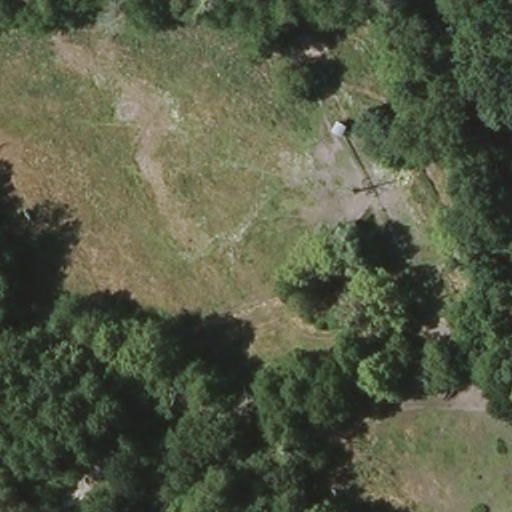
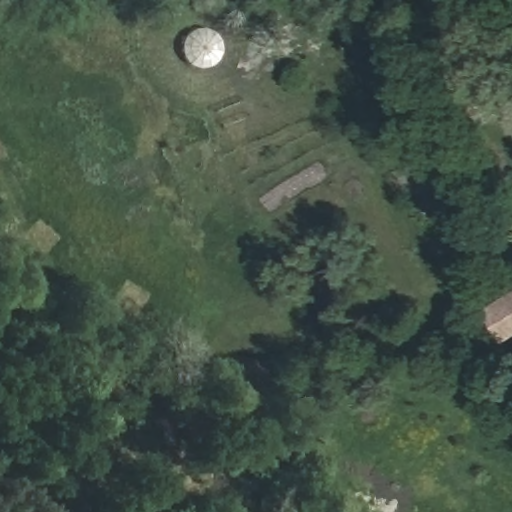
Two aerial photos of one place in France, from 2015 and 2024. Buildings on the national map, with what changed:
new [(506,342),(487,309),(512,294),(512,338),(506,342)]
demolished [(512,295),(512,359),(480,334),(512,295)]

